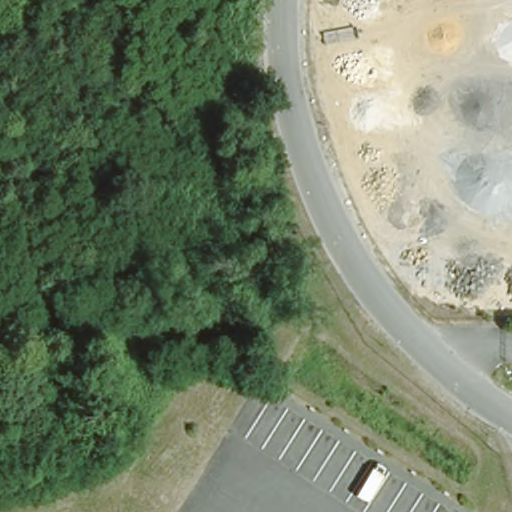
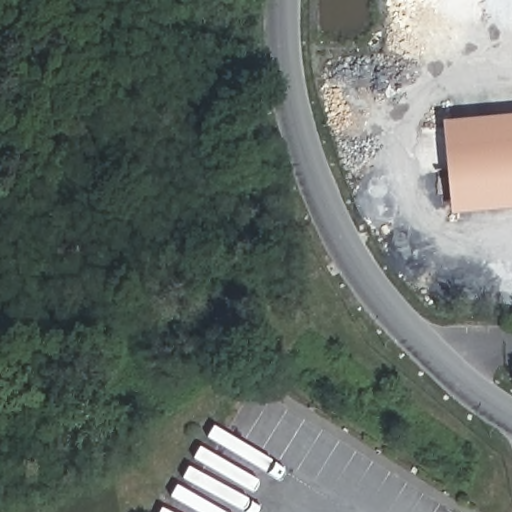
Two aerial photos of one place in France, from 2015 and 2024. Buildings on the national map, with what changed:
new [(442,122),(512,116),(512,209),(451,215),(442,122)]

